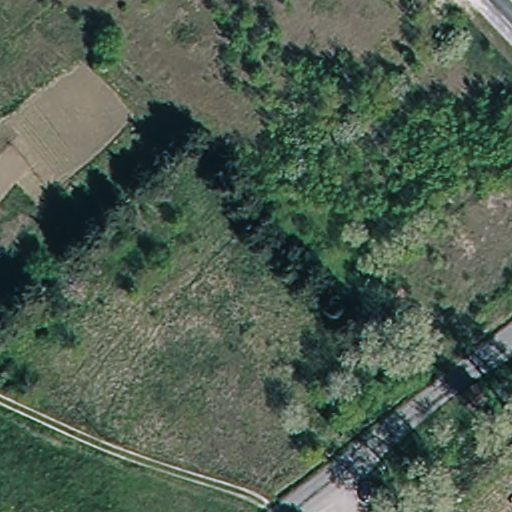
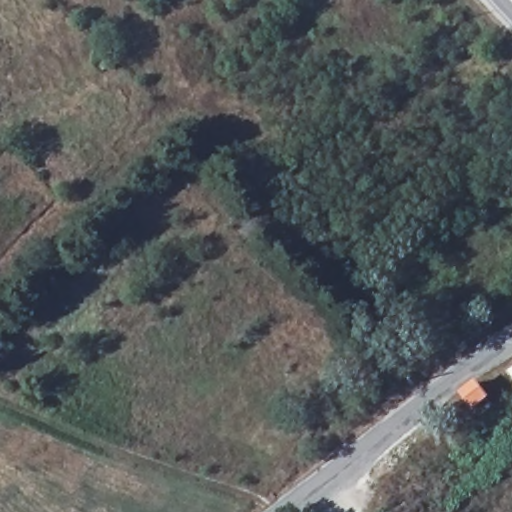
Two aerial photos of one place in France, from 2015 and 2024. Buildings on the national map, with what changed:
unchanged [(418,349),(407,337),(417,327),(427,339),(418,349)]
unchanged [(495,388),(480,400),(468,385),(484,373),(495,388)]

